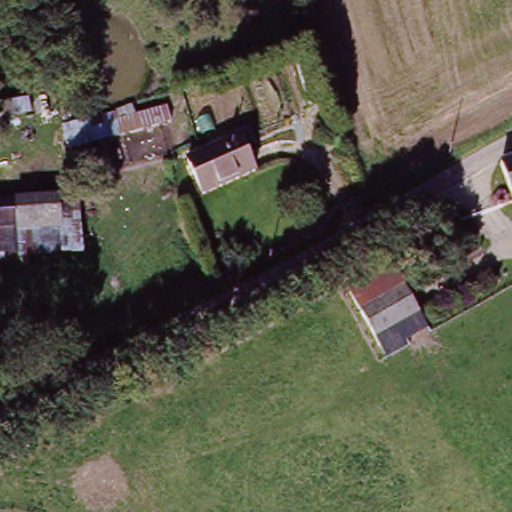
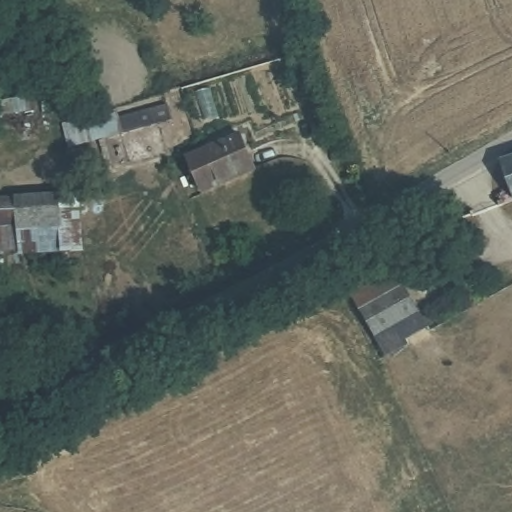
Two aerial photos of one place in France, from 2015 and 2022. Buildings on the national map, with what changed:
unchanged [(47,94),(49,110),(0,117),(0,101),(47,94)]
unchanged [(172,120),(117,135),(112,120),(91,126),(89,116),(134,102),(136,112),(167,104),(172,120)]
unchanged [(238,134),(254,171),(197,196),(181,158),(238,134)]
unchanged [(512,194),(501,162),(512,158),(512,194)]
unchanged [(56,200),(56,196),(76,195),(80,257),(14,261),(14,257),(0,258),(0,203),(56,200)]
unchanged [(395,269),(429,333),(407,345),(410,350),(386,363),(347,296),(395,269)]

